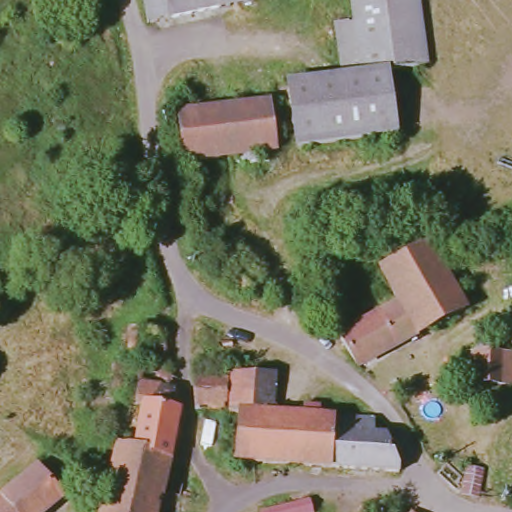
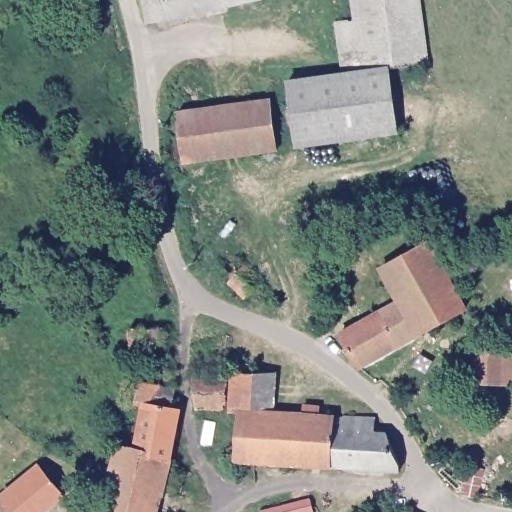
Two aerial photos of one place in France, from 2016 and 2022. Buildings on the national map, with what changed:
unchanged [(261,0),(261,1),(161,27),(155,0),(261,0)]
unchanged [(337,22),(356,20),(354,0),(425,0),(433,69),(392,67),(401,132),(298,149),(287,81),(342,75),(337,22)]
unchanged [(273,102),(279,154),(190,166),(183,112),(273,102)]
unchanged [(341,333),(397,301),(380,270),(429,242),(466,306),(361,369),(341,333)]
unchanged [(242,302),(220,290),(235,266),(256,280),(242,302)]
unchanged [(145,363),(143,352),(130,351),(129,330),(165,328),(166,364),(145,363)]
unchanged [(467,350),(512,352),(512,385),(478,385),(465,384),(466,363),(467,350)]
unchanged [(180,497),(163,494),(159,512),(102,512),(118,445),(134,450),(143,406),(134,404),(141,370),(172,375),(170,389),(176,390),(172,408),(181,411),(165,480),(183,485),(180,497)]
unchanged [(228,371),(226,410),(197,410),(198,371),(228,371)]
unchanged [(240,410),(232,410),(233,371),(278,371),(277,412),(372,415),(372,432),(389,432),(402,461),(401,470),(238,461),(239,436),(240,410)]
unchanged [(35,466),(63,498),(47,512),(0,512),(0,497),(35,466)]
unchanged [(484,470),(482,498),(463,496),(467,468),(484,470)]
unchanged [(310,512),(271,512),(308,503),(310,512)]

